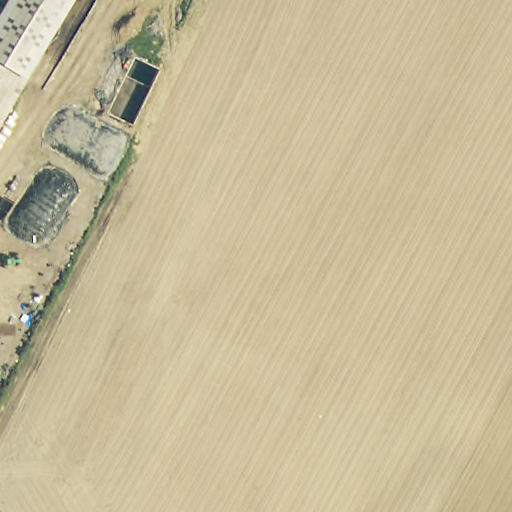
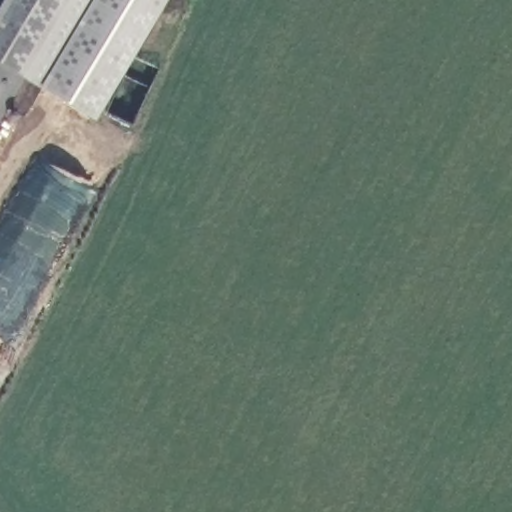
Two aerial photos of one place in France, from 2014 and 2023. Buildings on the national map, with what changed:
unchanged [(5,0),(72,0),(26,78),(0,122),(0,9),(5,0)]
new [(72,0),(168,0),(96,120),(26,78),(72,0)]

